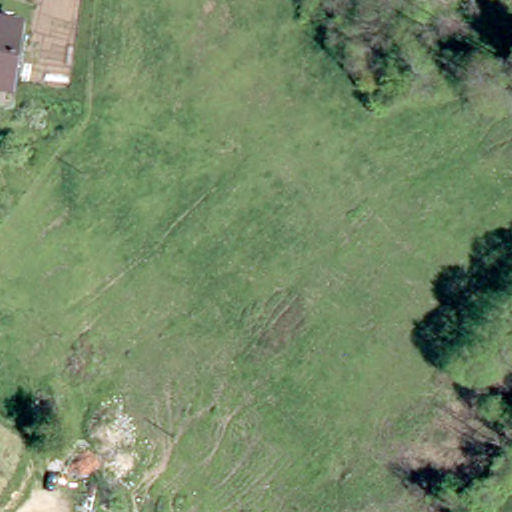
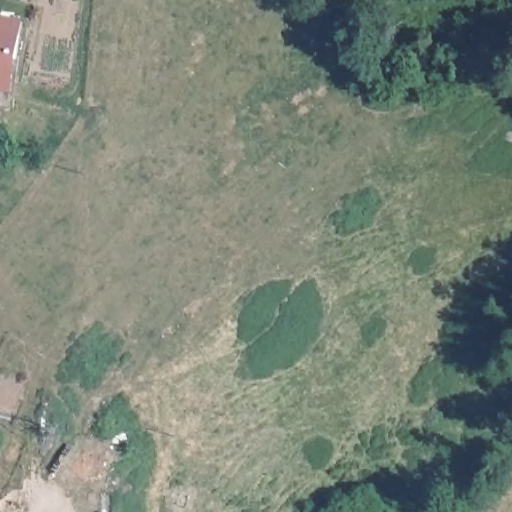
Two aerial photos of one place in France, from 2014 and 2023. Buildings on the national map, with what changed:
unchanged [(14,94),(0,92),(0,28),(24,33),(14,94)]

